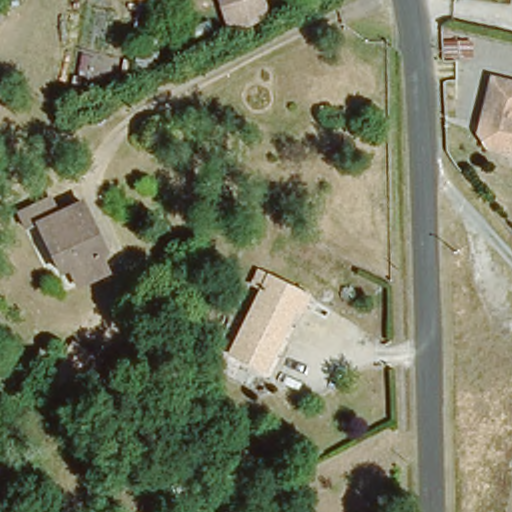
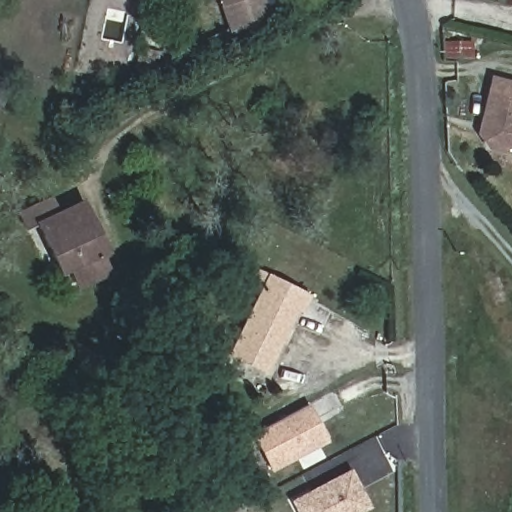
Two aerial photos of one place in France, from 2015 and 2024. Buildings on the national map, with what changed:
unchanged [(269,16),(232,33),(220,0),(263,0),(269,16)]
unchanged [(512,82),(512,150),(488,144),(479,130),(493,77),(512,82)]
new [(6,107),(0,104),(0,79),(15,86),(6,107)]
unchanged [(84,200),(93,219),(106,250),(100,253),(109,271),(78,286),(69,267),(59,272),(38,226),(29,230),(21,214),(53,199),(59,212),(84,200)]
unchanged [(309,296),(303,310),(299,308),(267,373),(230,355),(263,288),(255,284),(260,272),(309,296)]
unchanged [(95,362),(74,403),(48,388),(69,348),(95,362)]
new [(269,473),(249,434),(308,404),(328,442),(269,473)]
new [(369,506),(359,512),(295,512),(289,501),(352,469),(369,506)]

